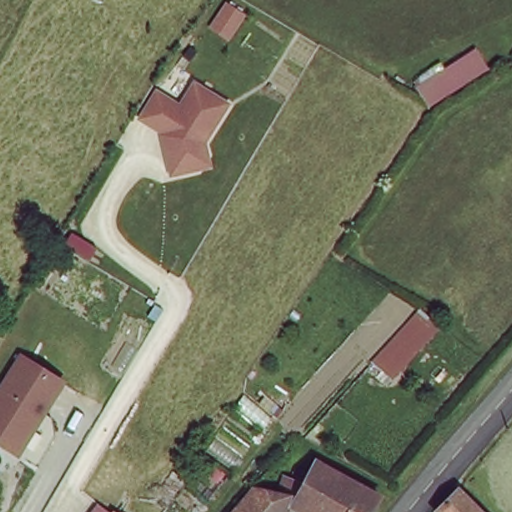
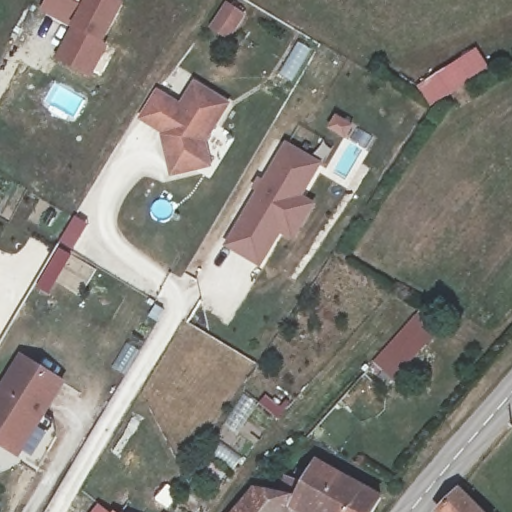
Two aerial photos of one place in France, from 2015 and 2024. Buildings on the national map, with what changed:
new [(56,59),(73,28),(42,12),(48,0),(118,0),(126,5),(105,43),(109,46),(91,80),(56,59)]
unchanged [(431,110),(416,86),(476,46),(488,70),(431,110)]
unchanged [(206,141),(212,164),(166,175),(156,134),(135,119),(151,90),(173,104),(189,79),(228,106),(206,141)]
new [(282,234),(261,268),(224,245),(286,141),(323,164),(303,196),(316,204),(294,241),(282,234)]
unchanged [(378,363),(418,310),(442,330),(395,380),(378,363)]
unchanged [(12,448),(0,441),(0,381),(16,352),(60,375),(37,416),(18,451),(12,448)]
unchanged [(292,510),(290,512),(236,512),(238,510),(255,490),(277,494),(284,480),(292,483),(297,471),(308,476),(315,465),(377,496),(369,512),(297,512),(292,510)]
unchanged [(435,511),(456,491),(477,512),(435,512),(435,511)]
unchanged [(109,509),(113,512),(107,512),(109,509)]

